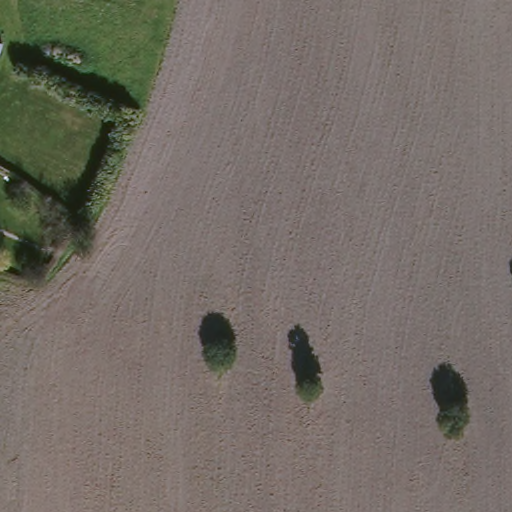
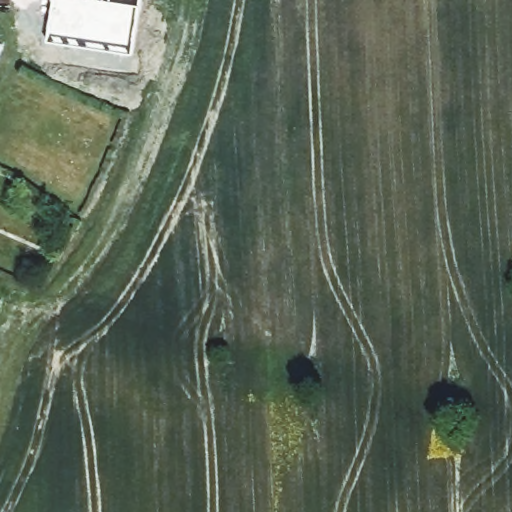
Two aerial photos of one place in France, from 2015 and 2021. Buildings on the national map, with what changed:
new [(53,0),(90,0),(108,3),(109,0),(137,0),(128,56),(46,44),(53,0)]

